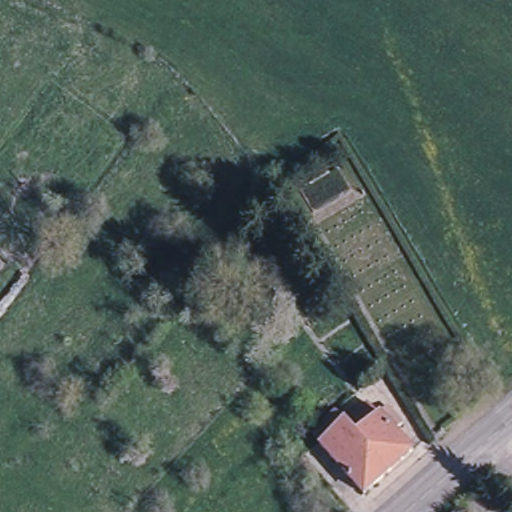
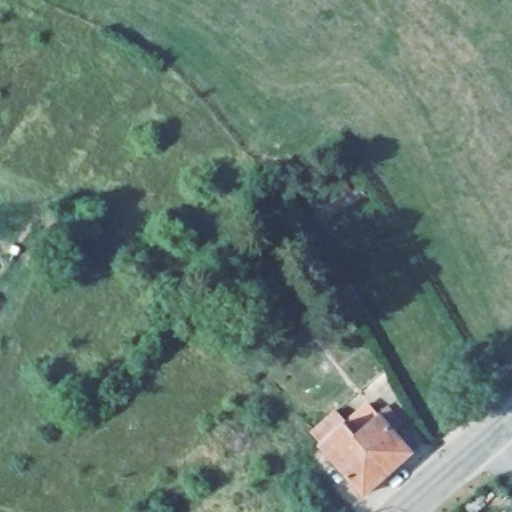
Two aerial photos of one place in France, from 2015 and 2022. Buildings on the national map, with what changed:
unchanged [(321,288),(330,301),(319,311),(309,297),(321,288)]
unchanged [(320,446),(312,437),(335,415),(345,427),(367,406),(378,419),(387,411),(402,428),(394,436),(412,456),(365,499),(320,449),(322,448),(320,446)]

